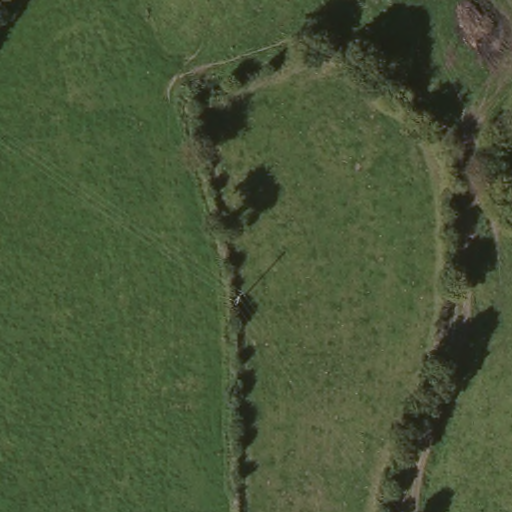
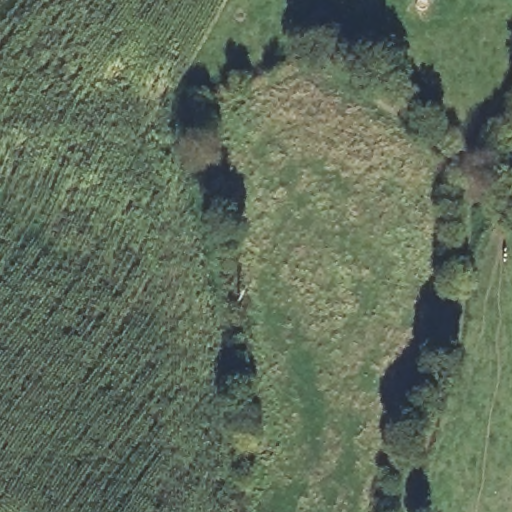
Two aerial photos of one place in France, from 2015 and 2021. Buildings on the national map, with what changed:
[]

